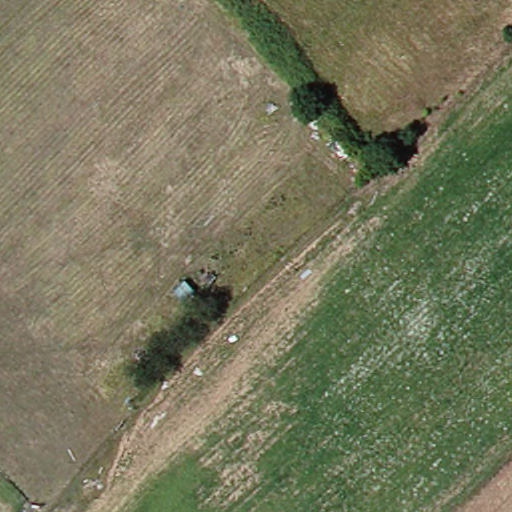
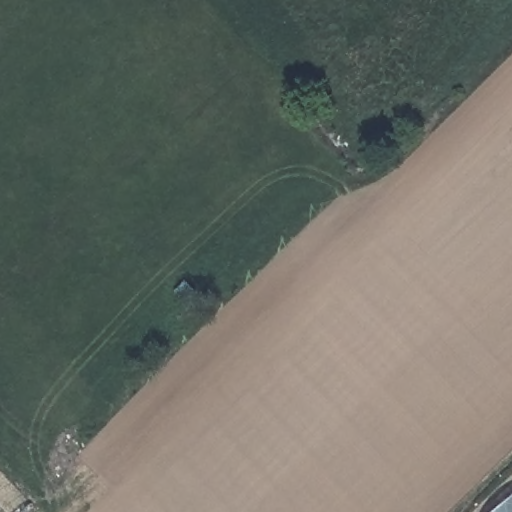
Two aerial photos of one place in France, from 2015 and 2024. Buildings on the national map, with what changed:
new [(512,498),(512,512),(495,512),(512,498)]

